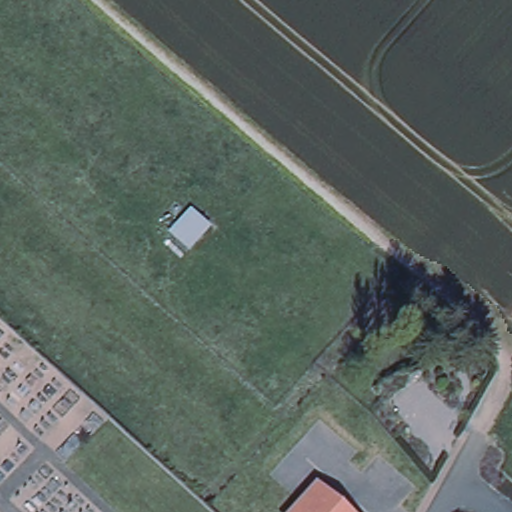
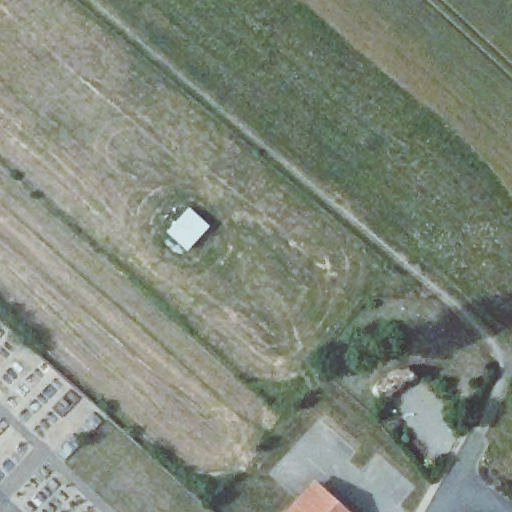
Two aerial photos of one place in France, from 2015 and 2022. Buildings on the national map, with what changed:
unchanged [(187,252),(164,232),(187,206),(210,228),(187,252)]
unchanged [(300,511),(304,508),(307,507),(309,506),(312,506),(327,490),(335,495),(352,512),(299,512),(300,511)]

